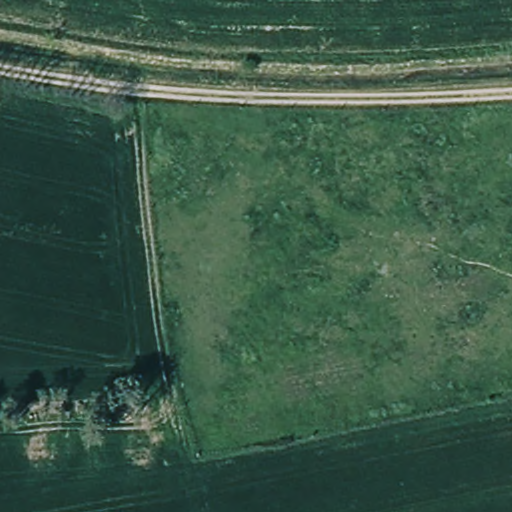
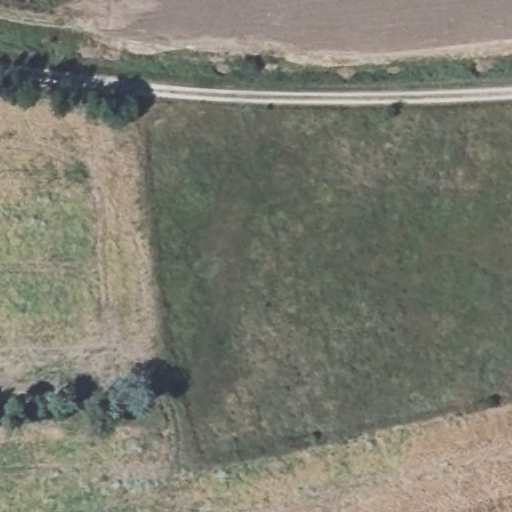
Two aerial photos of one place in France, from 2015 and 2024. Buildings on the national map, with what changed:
[]

